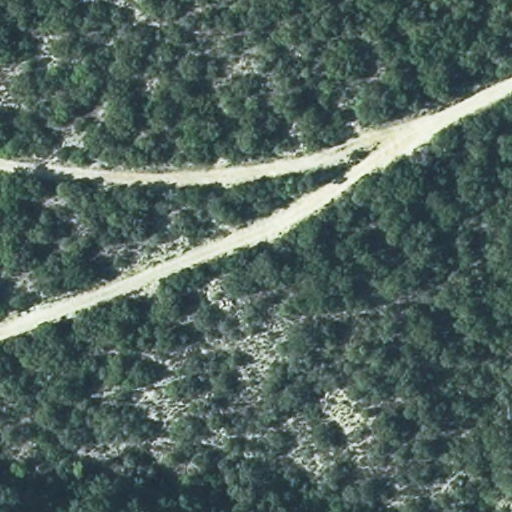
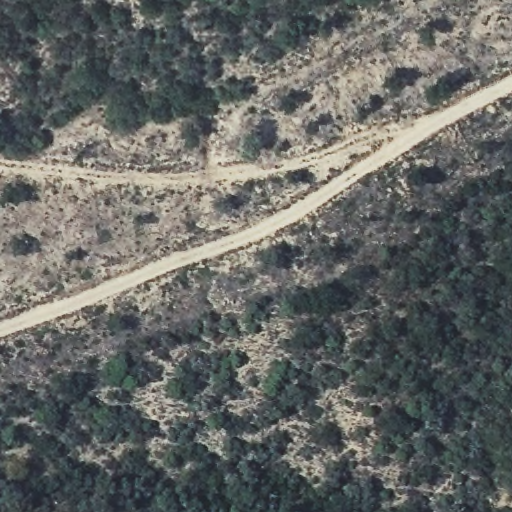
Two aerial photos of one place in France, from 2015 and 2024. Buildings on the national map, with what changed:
[]

